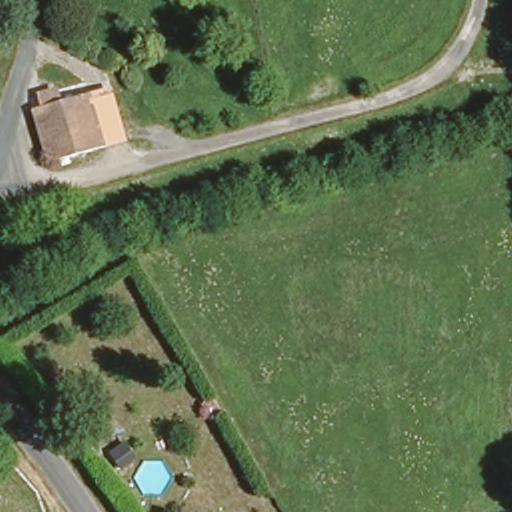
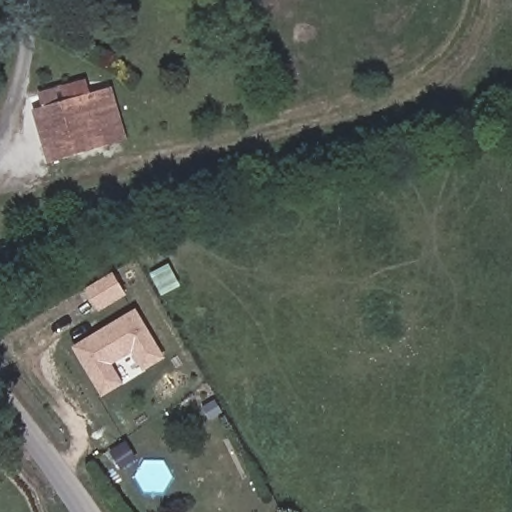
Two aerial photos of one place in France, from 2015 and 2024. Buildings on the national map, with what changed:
unchanged [(33,108),(88,92),(105,144),(50,161),(33,108)]
new [(150,272),(169,265),(178,288),(159,295),(150,272)]
new [(99,312),(85,288),(114,271),(128,295),(99,312)]
new [(166,358),(144,372),(133,353),(114,364),(124,384),(103,397),(72,345),(136,307),(139,311),(166,358)]

